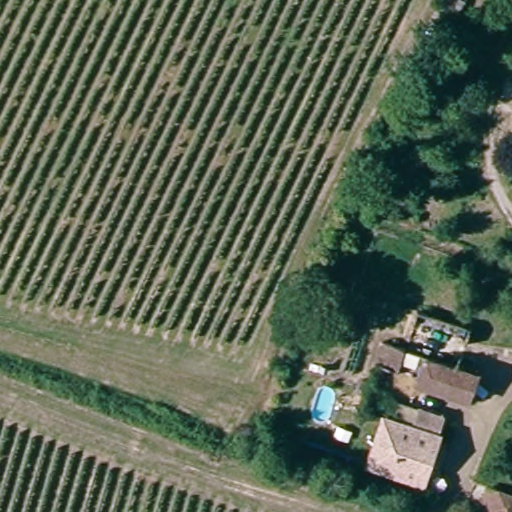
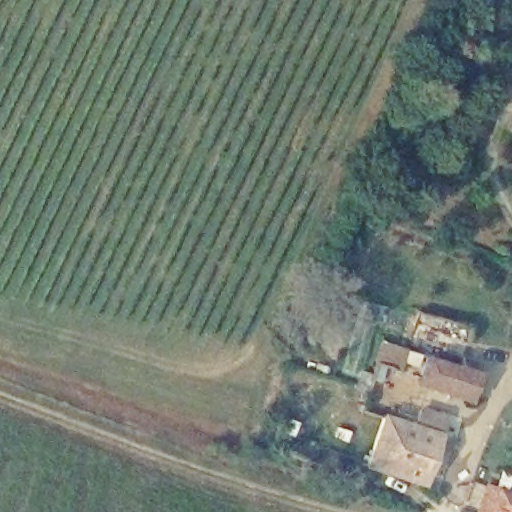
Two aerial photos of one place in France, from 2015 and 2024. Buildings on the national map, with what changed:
unchanged [(472,402),(413,384),(423,355),(483,372),(472,402)]
unchanged [(376,426),(380,412),(410,421),(415,403),(438,410),(419,480),(365,467),(376,426)]
unchanged [(512,494),(512,512),(478,512),(486,488),(512,494)]

